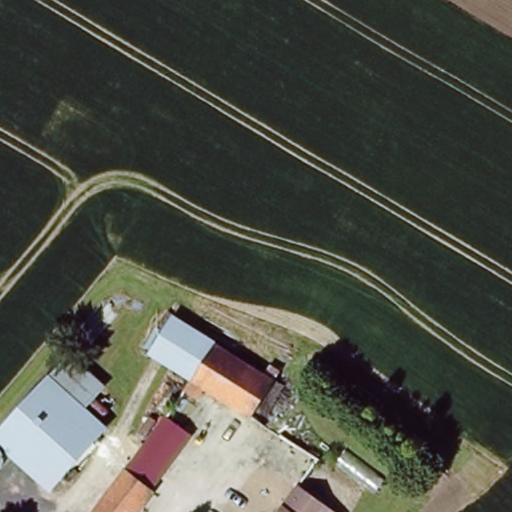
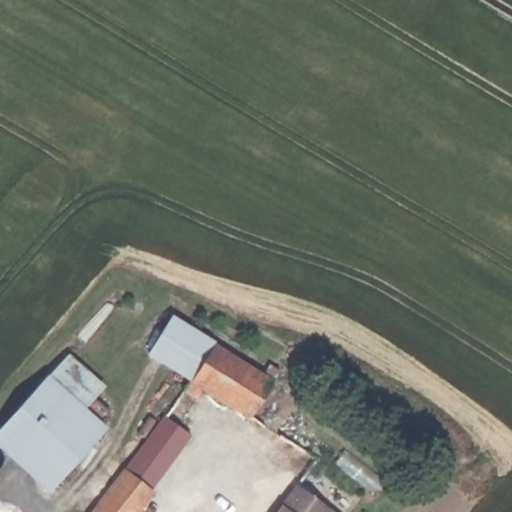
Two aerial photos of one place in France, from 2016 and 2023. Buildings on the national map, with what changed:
unchanged [(250,420),(201,389),(195,398),(182,390),(188,380),(145,352),(168,315),(273,382),(250,420)]
unchanged [(0,454),(0,428),(65,353),(105,387),(85,410),(107,430),(48,496),(0,454)]
unchanged [(149,481),(123,463),(165,407),(190,426),(149,481)]
unchanged [(149,481),(154,485),(134,512),(87,512),(123,463),(149,481)]
unchanged [(326,508),(332,512),(275,512),(295,485),(326,508)]

